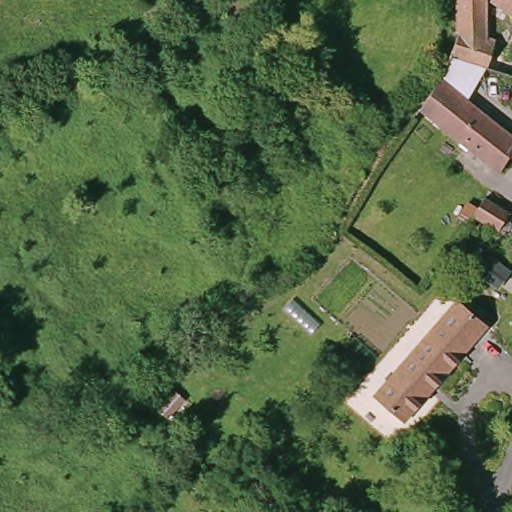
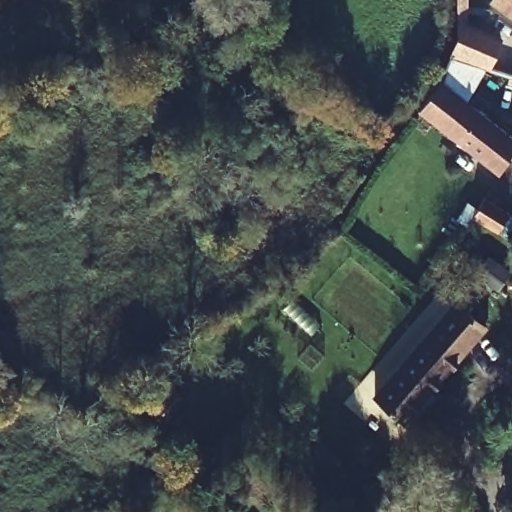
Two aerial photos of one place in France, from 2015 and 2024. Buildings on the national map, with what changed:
unchanged [(492,9),(481,47),(446,35),(454,0),(471,0),(492,9)]
unchanged [(496,9),(502,0),(512,0),(512,19),(496,9)]
unchanged [(441,58),(446,35),(481,47),(489,50),(487,55),(512,64),(512,79),(460,64),(441,58)]
unchanged [(475,144),(422,107),(432,85),(441,58),(460,64),(450,88),(512,133),(512,158),(507,166),(475,144)]
unchanged [(470,226),(484,202),(507,216),(494,239),(479,231),(472,227),(470,226)]
unchanged [(456,295),(490,323),(409,425),(375,394),(456,295)]

